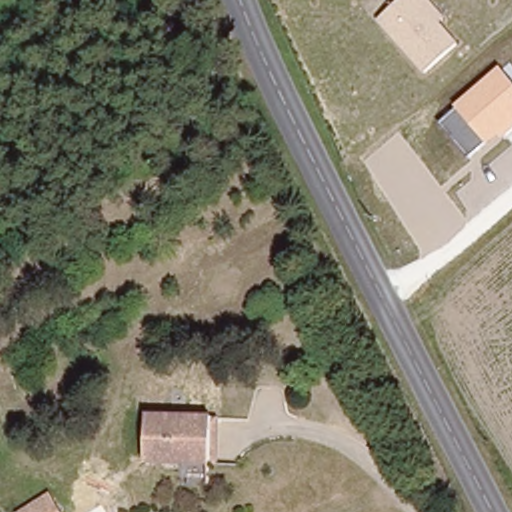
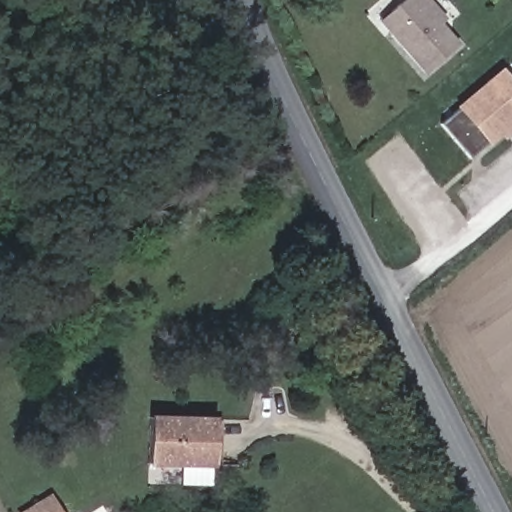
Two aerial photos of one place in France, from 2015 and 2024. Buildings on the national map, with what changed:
unchanged [(425,72),(381,21),(405,0),(433,0),(447,19),(444,23),(460,44),(425,72)]
unchanged [(443,124),(460,110),(457,106),(503,69),(512,78),(512,125),(469,160),(443,124)]
unchanged [(151,417),(212,418),(212,466),(151,465),(151,417)]
unchanged [(61,512),(24,512),(50,496),(61,512)]

